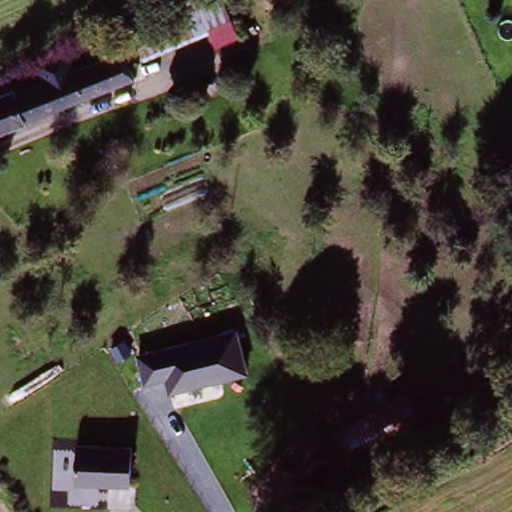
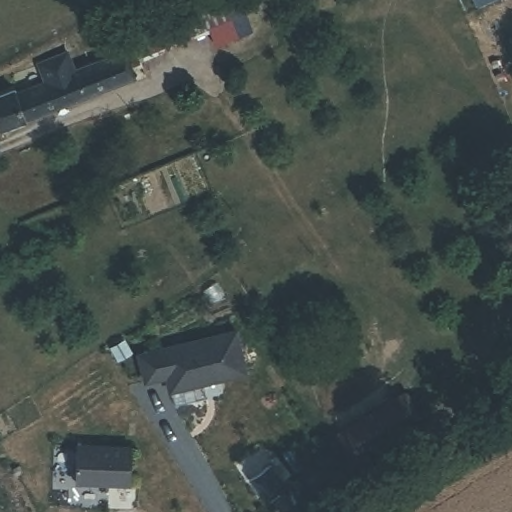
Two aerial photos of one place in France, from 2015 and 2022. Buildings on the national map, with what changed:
unchanged [(131,22),(181,0),(223,0),(235,24),(147,58),(131,22)]
unchanged [(14,90),(17,95),(57,77),(50,64),(68,55),(76,69),(127,46),(139,70),(5,130),(0,121),(0,96),(14,90)]
unchanged [(237,329),(249,373),(170,391),(167,380),(145,384),(137,352),(237,329)]
unchanged [(405,391),(423,425),(350,467),(330,432),(405,391)]
unchanged [(132,443),(132,485),(77,483),(76,442),(132,443)]

